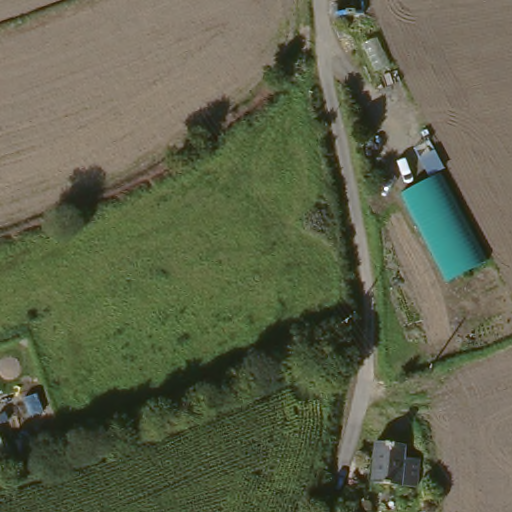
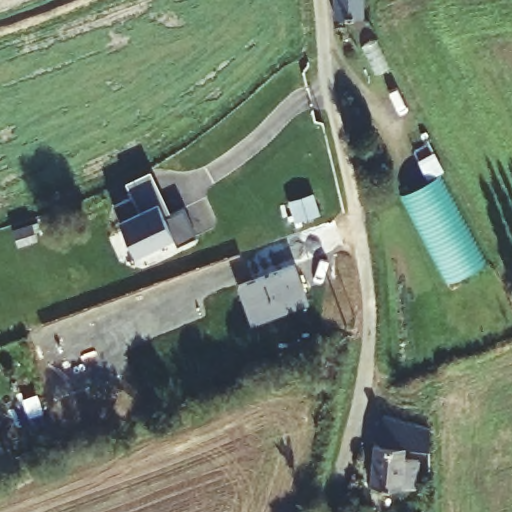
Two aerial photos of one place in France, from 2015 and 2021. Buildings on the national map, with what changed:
unchanged [(339,20),(338,0),(361,0),(361,1),(363,18),(339,20)]
unchanged [(369,151),(381,149),(383,164),(372,166),(369,151)]
new [(149,169),(171,214),(183,209),(195,235),(178,244),(173,235),(134,253),(118,217),(112,205),(131,197),(125,181),(149,169)]
unchanged [(481,268),(444,289),(397,198),(436,179),(481,268)]
new [(311,301),(253,322),(238,283),(294,262),(311,301)]
unchanged [(374,485),(381,431),(399,433),(398,445),(406,446),(404,462),(420,464),(417,489),(401,488),(374,485)]

